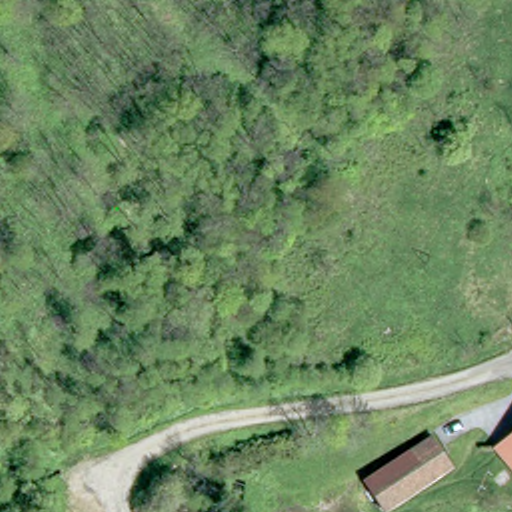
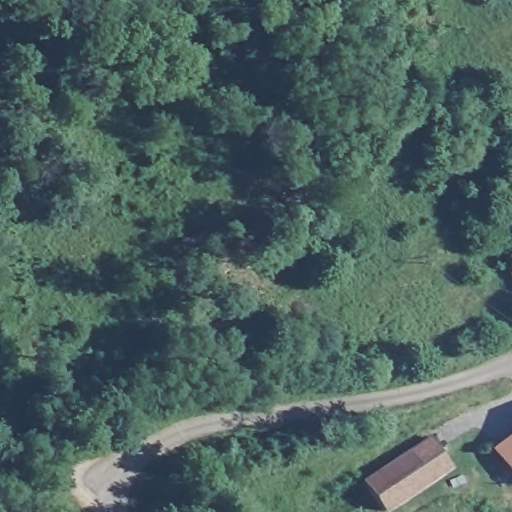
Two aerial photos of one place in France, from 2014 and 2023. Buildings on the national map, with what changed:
unchanged [(367,490),(433,445),(455,476),(402,512),(383,512),(367,490)]
unchanged [(508,451),(512,448),(512,455),(508,451)]

